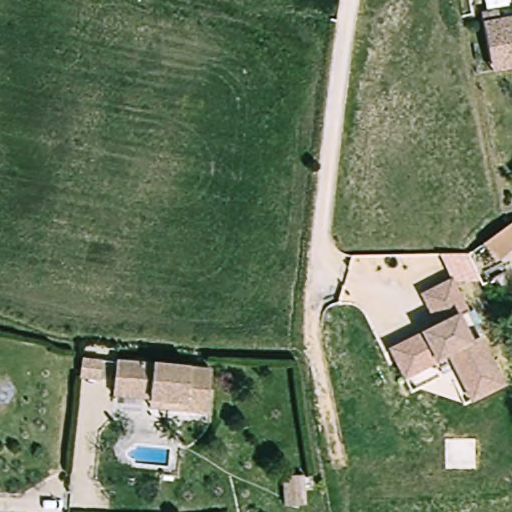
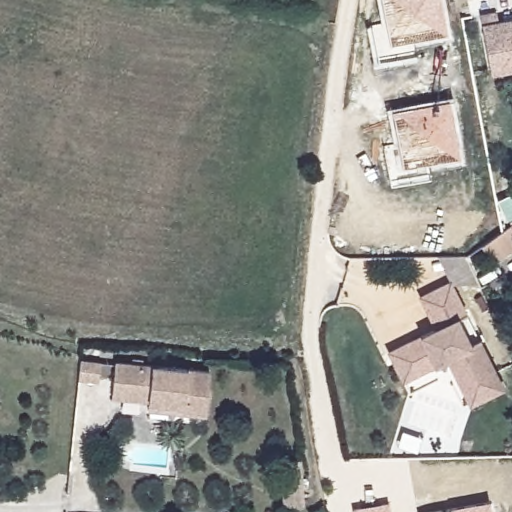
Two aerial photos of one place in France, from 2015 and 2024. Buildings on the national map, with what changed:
new [(414,40),(416,56),(374,64),(366,23),(380,20),(377,0),(443,0),(451,34),(414,40)]
unchanged [(497,74),(487,25),(512,20),(512,71),(497,74)]
new [(464,159),(429,167),(431,177),(389,185),(379,143),(393,140),(387,108),(447,95),(464,159)]
unchanged [(482,249),(511,224),(512,223),(512,252),(495,264),(482,249)]
unchanged [(434,326),(417,295),(446,279),(504,381),(471,398),(457,367),(449,355),(414,373),(400,346),(434,326)]
unchanged [(400,346),(414,373),(449,355),(457,367),(412,392),(398,368),(389,351),(400,346)]
unchanged [(115,394),(118,379),(121,359),(208,370),(201,415),(173,413),(141,410),(143,398),(115,394)]
unchanged [(103,372),(101,393),(81,390),(84,370),(103,372)]
unchanged [(301,488),(304,512),(285,512),(283,489),(289,488),(301,488)]
new [(489,499),(491,512),(425,512),(451,507),(489,499)]
new [(351,506),(388,500),(390,512),(352,512),(351,506)]

